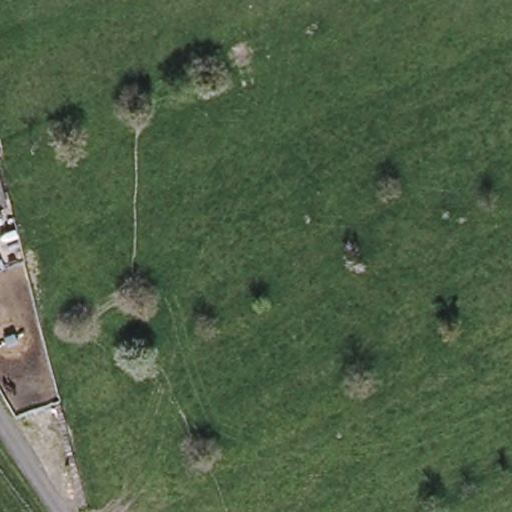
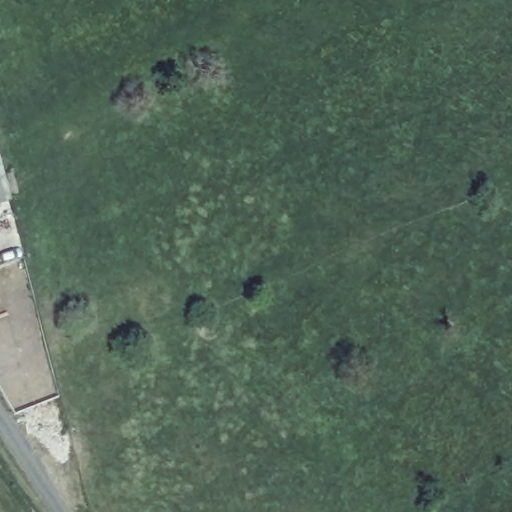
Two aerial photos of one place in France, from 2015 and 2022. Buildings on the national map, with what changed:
unchanged [(5,199),(0,200),(0,182),(5,199)]

